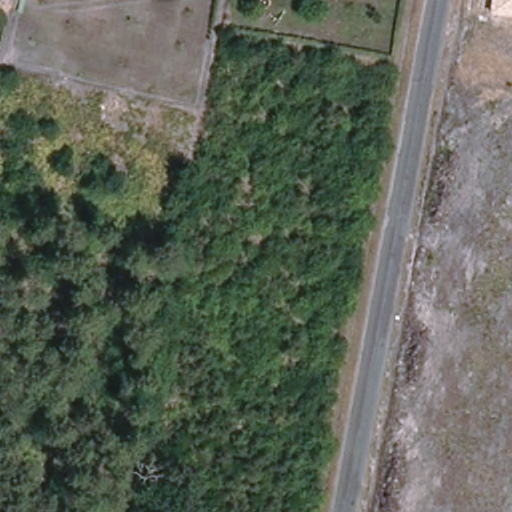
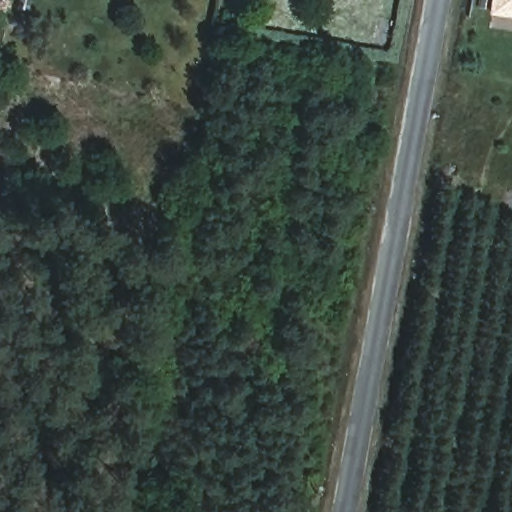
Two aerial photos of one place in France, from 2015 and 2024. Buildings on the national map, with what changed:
unchanged [(492,0),(512,0),(512,18),(490,15),(492,0)]

